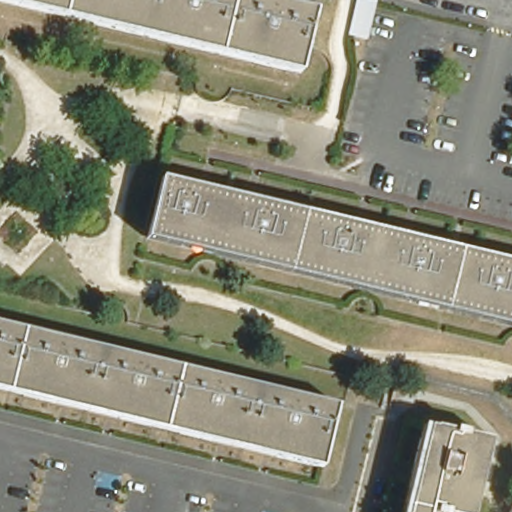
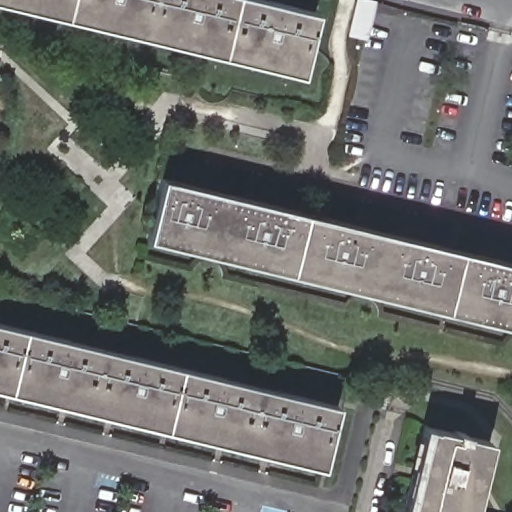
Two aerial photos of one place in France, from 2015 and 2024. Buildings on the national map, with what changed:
unchanged [(303,73),(12,0),(289,0),(319,8),(303,73)]
unchanged [(151,237),(147,235),(149,226),(163,172),(167,173),(512,258),(512,326),(151,237)]
unchanged [(325,460),(313,457),(0,378),(0,319),(339,403),(325,460)]
unchanged [(0,388),(0,378),(313,457),(325,460),(324,469),(0,388)]
unchanged [(405,512),(429,415),(438,417),(414,512),(405,512)]
unchanged [(496,431),(476,512),(414,512),(438,417),(496,431)]

